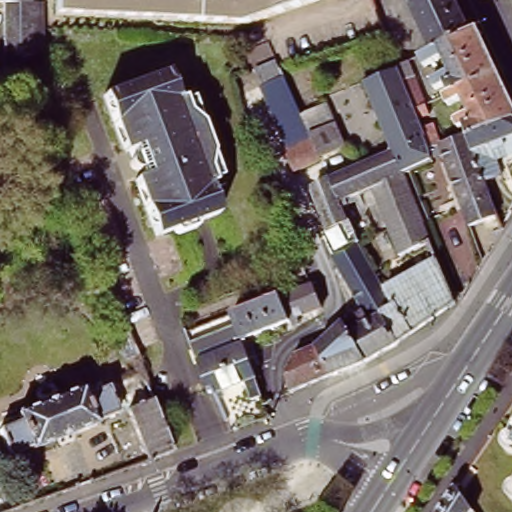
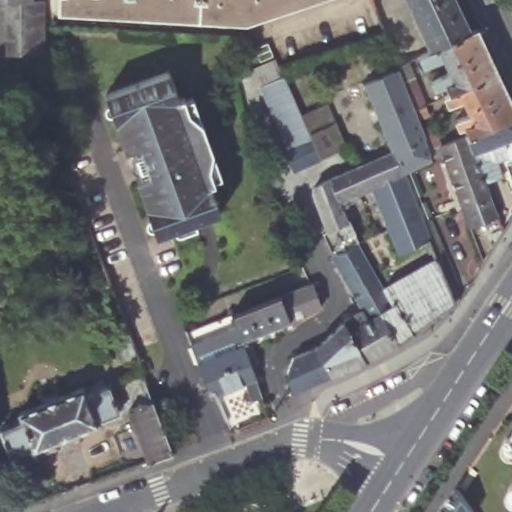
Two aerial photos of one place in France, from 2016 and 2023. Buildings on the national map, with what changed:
unchanged [(6,58),(5,2),(0,2),(0,0),(35,0),(35,3),(46,2),(47,25),(48,46),(47,57),(47,71),(6,72),(6,58)]
unchanged [(244,25),(59,15),(60,0),(319,0),(244,25)]
unchanged [(467,33),(429,50),(405,0),(451,0),(467,33)]
unchanged [(466,135),(463,126),(456,129),(452,120),(467,114),(461,100),(447,106),(443,95),(448,92),(444,84),(432,89),(429,80),(446,72),(441,60),(424,67),(419,55),(429,50),(467,33),(475,30),(512,110),(512,119),(466,135)]
unchanged [(266,110),(258,90),(255,84),(250,71),(270,63),(275,75),(278,81),(287,101),(266,110)]
unchanged [(332,246),(330,239),(326,227),(312,186),(329,178),(392,150),(365,81),(397,67),(402,78),(413,74),(428,114),(417,117),(421,128),(432,124),(440,144),(465,135),(483,184),(490,202),(496,216),(470,227),(443,155),(431,159),(432,161),(408,172),(405,175),(424,225),(422,225),(430,244),(400,255),(372,186),(346,198),(349,203),(343,205),(348,217),(351,227),(352,229),(354,234),(361,248),(366,246),(371,257),(367,259),(383,289),(395,310),(382,316),(369,322),(362,310),(330,252),(332,246)]
unchanged [(170,74),(180,100),(185,99),(185,101),(190,112),(191,114),(203,124),(213,151),(210,166),(210,169),(213,180),(214,184),(208,185),(218,215),(155,235),(136,180),(145,177),(142,171),(140,172),(132,168),(131,162),(134,155),(136,154),(134,147),(126,150),(107,95),(170,74)]
unchanged [(288,175),(280,155),(285,152),(270,117),(291,110),(296,121),(320,110),(338,151),(315,161),(315,164),(288,175)]
unchanged [(466,135),(512,119),(512,165),(498,170),(501,178),(483,184),(465,135),(466,135)]
unchanged [(395,310),(383,289),(436,260),(450,291),(455,303),(448,308),(398,345),(382,316),(395,310)]
unchanged [(309,288),(313,287),(323,313),(299,322),(299,328),(291,331),(290,326),(280,300),(309,288)]
unchanged [(243,343),(242,344),(235,326),(232,318),(280,300),(290,326),(243,343)]
unchanged [(365,362),(343,321),(362,310),(369,322),(382,316),(398,345),(365,362)]
unchanged [(365,362),(333,375),(319,345),(343,321),(365,362)]
unchanged [(242,344),(243,343),(246,351),(256,378),(256,380),(263,400),(252,403),(245,386),(217,396),(215,392),(207,395),(196,365),(188,343),(210,335),(235,326),(242,344)]
unchanged [(139,355),(125,361),(118,343),(132,338),(139,355)]
unchanged [(292,392),(287,372),(292,357),(319,345),(333,375),(292,392)]
unchanged [(166,450),(168,449),(173,459),(161,463),(150,467),(120,389),(145,380),(166,450)]
unchanged [(88,396),(111,388),(120,413),(98,422),(99,425),(33,451),(32,447),(10,455),(0,431),(0,430),(22,421),(20,413),(85,388),(88,396)]
unchanged [(451,488),(466,512),(435,512),(442,501),(451,488)]

